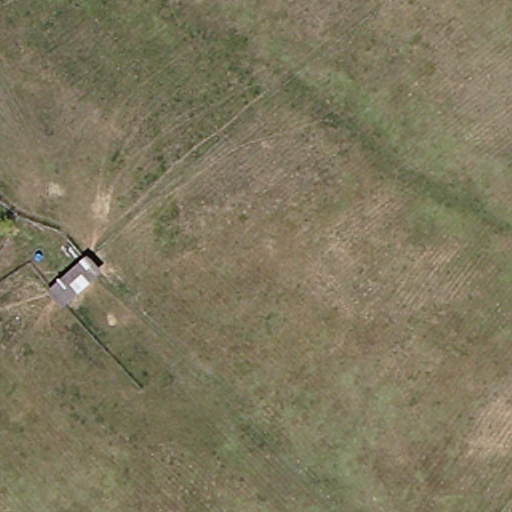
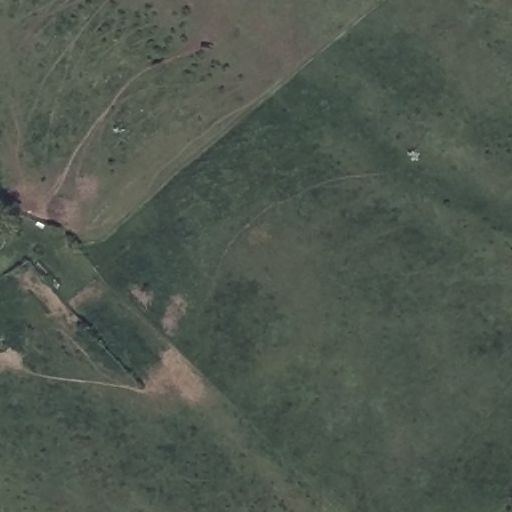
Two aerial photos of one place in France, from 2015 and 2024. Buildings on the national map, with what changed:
unchanged [(103,271),(64,305),(48,287),(89,254),(103,271)]

